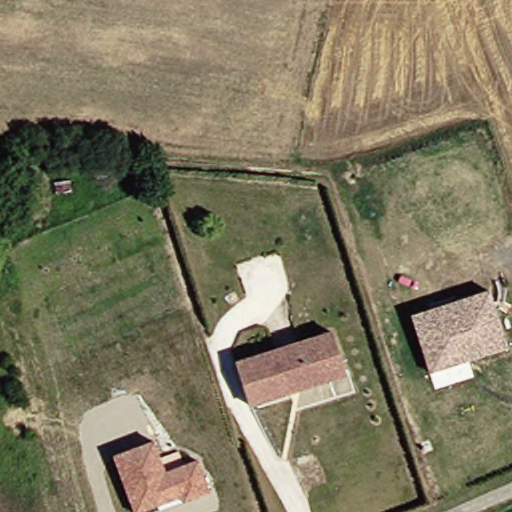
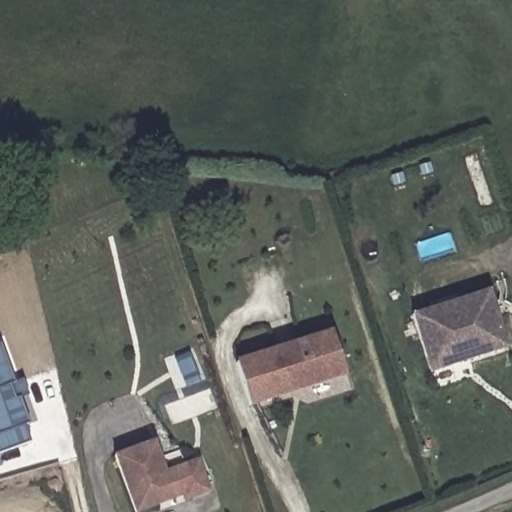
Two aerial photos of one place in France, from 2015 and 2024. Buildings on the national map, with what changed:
unchanged [(509,351),(431,372),(414,314),(493,293),(509,351)]
unchanged [(234,357),(315,334),(332,329),(344,371),(327,376),(246,399),(234,357)]
new [(25,381),(31,397),(23,400),(32,425),(28,427),(33,444),(0,456),(0,345),(3,344),(17,384),(25,381)]
unchanged [(144,512),(135,512),(114,458),(154,443),(166,474),(199,462),(210,493),(193,500),(184,503),(183,498),(144,512)]

